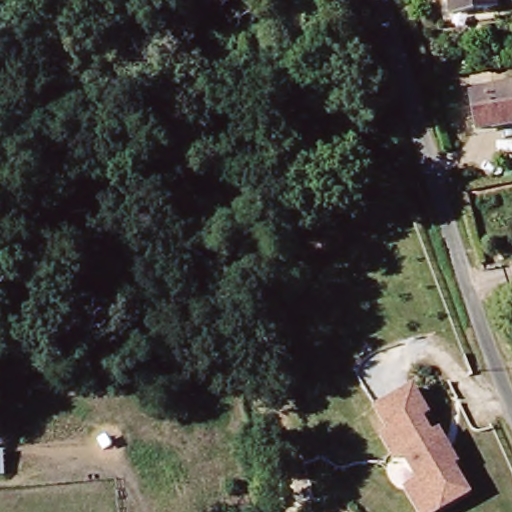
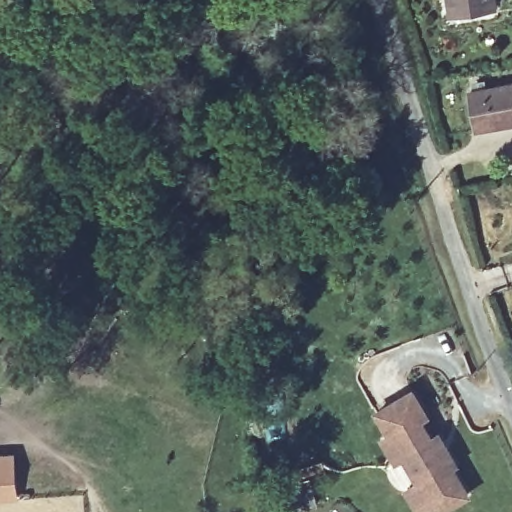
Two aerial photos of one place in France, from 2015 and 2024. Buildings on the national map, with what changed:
unchanged [(487,0),(488,2),(447,9),(445,0),(487,0)]
unchanged [(512,81),(512,120),(473,126),(467,89),(512,81)]
unchanged [(425,417),(420,420),(429,440),(436,437),(453,465),(449,467),(464,495),(436,512),(417,512),(404,491),(419,483),(403,457),(394,462),(383,438),(389,435),(378,412),(411,393),(425,417)]
new [(19,500),(0,501),(0,453),(15,452),(19,500)]

